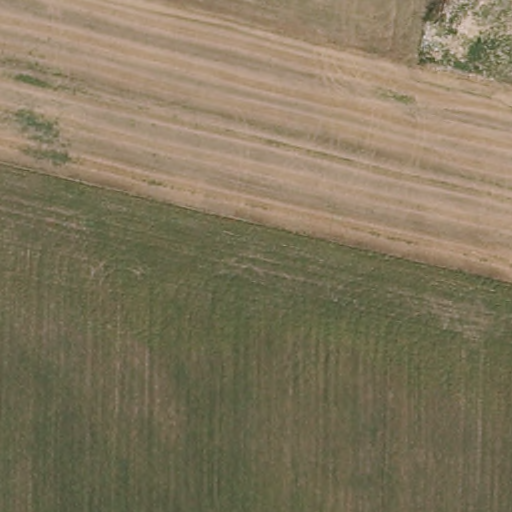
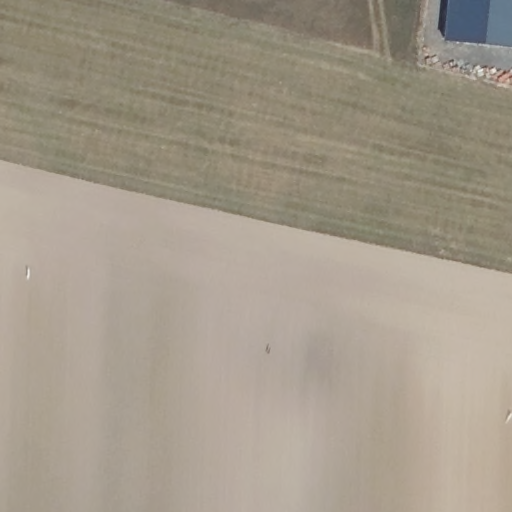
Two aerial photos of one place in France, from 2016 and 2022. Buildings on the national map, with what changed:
new [(446,41),(450,0),(512,0),(512,48),(446,41)]

